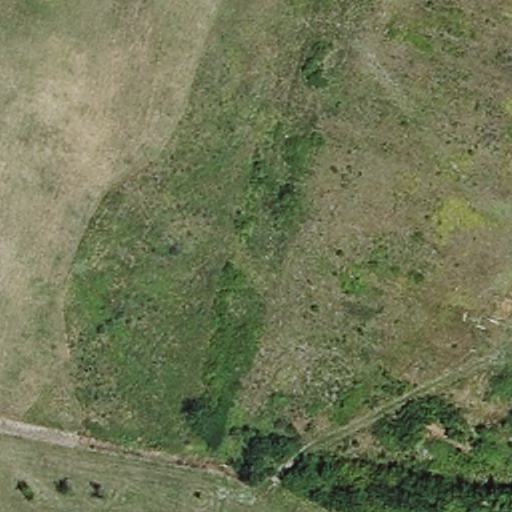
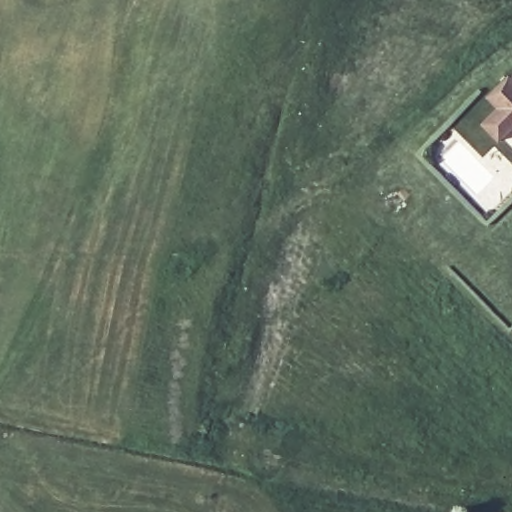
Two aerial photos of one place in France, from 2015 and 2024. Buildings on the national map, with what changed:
new [(498,105),(486,94),(506,74),(512,81),(512,123),(497,138),(481,121),(498,105)]

